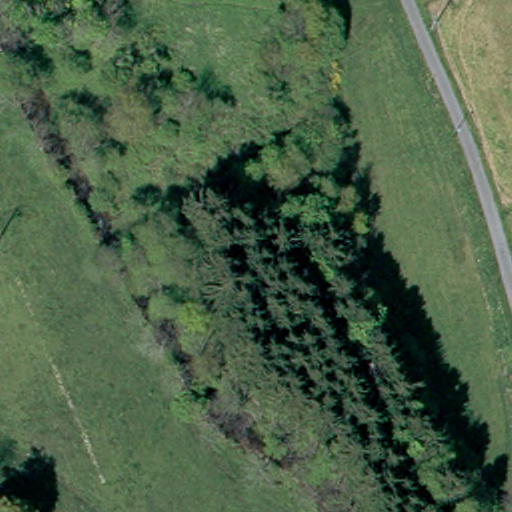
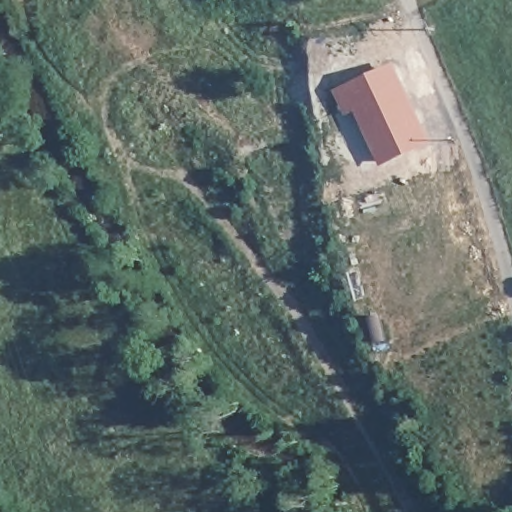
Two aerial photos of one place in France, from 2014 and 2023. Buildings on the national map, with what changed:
new [(392,68),(400,86),(395,88),(412,126),(417,124),(425,142),(382,162),(357,106),(347,110),(339,92),(392,68)]

